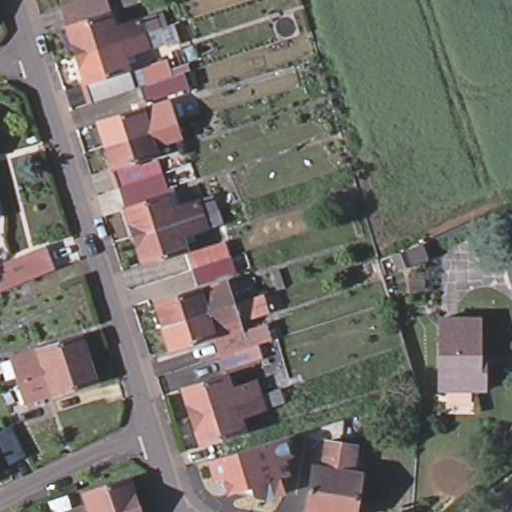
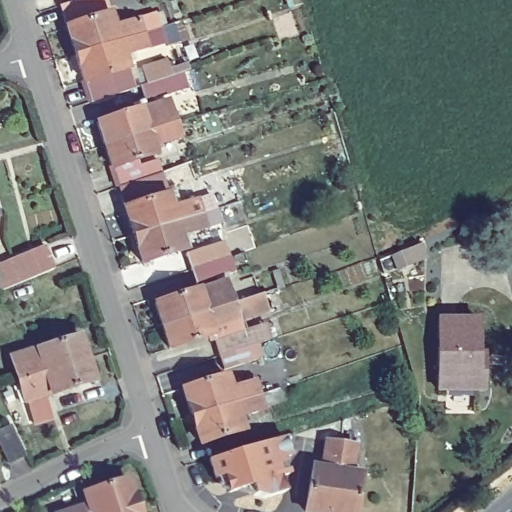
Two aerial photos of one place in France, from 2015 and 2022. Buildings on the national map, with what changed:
unchanged [(107,0),(110,11),(67,25),(59,1),(62,0),(107,0)]
unchanged [(67,25),(110,11),(114,24),(139,16),(156,11),(160,24),(164,38),(148,43),(123,50),(127,64),(133,83),(89,96),(83,78),(76,52),(67,25)]
unchanged [(182,66),(188,84),(144,97),(139,81),(182,66)]
unchanged [(104,142),(97,119),(140,105),(166,96),(168,106),(173,121),(178,135),(152,143),(154,151),(111,165),(104,142)]
unchanged [(124,205),(118,184),(113,171),(156,158),(161,169),(166,186),(171,185),(178,205),(197,199),(213,194),(216,206),(221,220),(206,225),(181,232),(186,246),(141,260),(133,232),(124,205)]
unchanged [(469,248),(465,235),(486,227),(489,236),(490,242),(469,248)]
unchanged [(233,270),(196,282),(191,267),(186,252),(223,240),(228,255),(233,270)]
unchanged [(43,247),(54,270),(0,294),(0,268),(43,247)]
unchanged [(161,323),(155,300),(198,286),(224,277),(227,286),(231,300),(236,315),(209,323),(213,332),(169,346),(161,323)]
unchanged [(436,317),(475,317),(475,352),(479,352),(478,388),(434,388),(436,317)]
unchanged [(226,367),(221,353),(216,338),(253,326),(258,340),(263,356),(226,367)]
unchanged [(23,394),(19,379),(13,357),(38,349),(82,336),(88,358),(94,381),(51,394),(30,400),(28,392),(23,394)]
unchanged [(191,413),(183,386),(226,372),(230,386),(254,379),(259,391),(276,386),(280,398),(263,404),(263,405),(251,409),(238,413),(243,426),(200,440),(191,413)]
unchanged [(11,426),(25,455),(9,463),(0,445),(0,431),(11,426)]
unchanged [(291,435),(278,493),(261,503),(249,497),(246,488),(225,494),(220,478),(211,480),(206,461),(291,435)]
unchanged [(354,512),(309,512),(306,512),(313,466),(321,467),(324,441),(340,443),(355,445),(351,472),(359,473),(354,512)]
unchanged [(86,505),(83,493),(126,480),(135,506),(137,512),(66,512),(86,505)]

